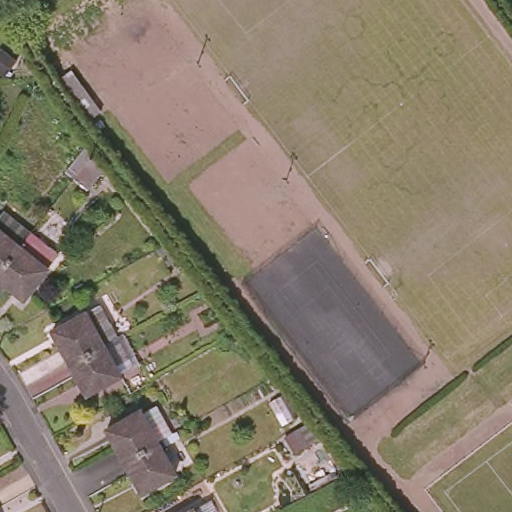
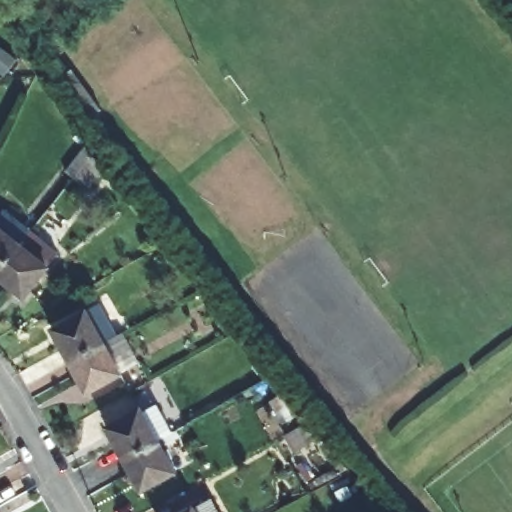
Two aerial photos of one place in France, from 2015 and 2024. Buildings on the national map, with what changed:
unchanged [(0,234),(10,243),(0,256),(0,234)]
unchanged [(0,282),(0,256),(10,243),(43,269),(18,297),(0,282)]
unchanged [(53,330),(79,315),(97,348),(69,363),(53,330)]
unchanged [(113,378),(85,394),(69,363),(97,348),(113,378)]
unchanged [(109,427),(138,412),(153,441),(125,456),(109,427)]
unchanged [(169,471),(141,486),(125,456),(153,441),(169,471)]

